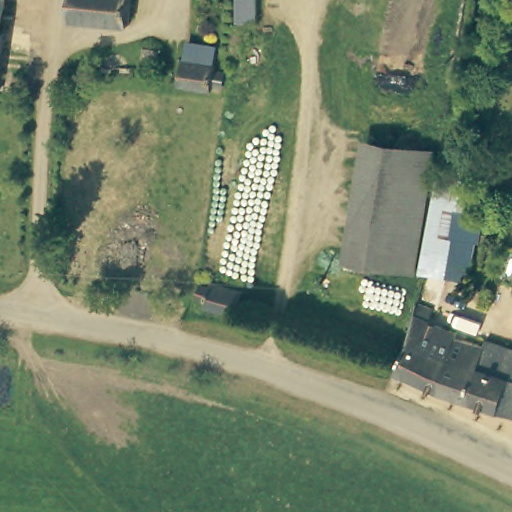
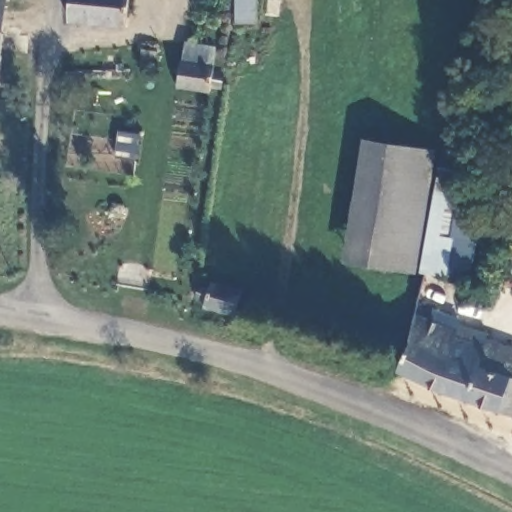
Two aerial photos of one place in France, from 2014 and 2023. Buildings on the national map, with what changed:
unchanged [(123,0),(121,21),(64,15),(66,0),(123,0)]
unchanged [(255,0),(255,23),(236,23),(236,0),(255,0)]
unchanged [(212,71),(217,73),(218,73),(219,74),(220,74),(221,76),(222,79),(222,80),(222,81),(221,83),(221,84),(220,85),(219,86),(217,87),(216,87),(209,87),(209,92),(176,86),(180,60),(184,61),(186,43),(214,46),(212,66),(213,66),(212,71)]
unchanged [(139,65),(141,49),(157,51),(155,68),(139,65)]
unchanged [(410,265),(347,256),(366,135),(429,145),(410,265)]
unchanged [(203,307),(205,300),(195,298),(198,284),(209,287),(211,282),(242,290),(235,315),(203,307)]
unchanged [(429,315),(456,327),(455,332),(484,340),(486,334),(493,337),(512,344),(512,410),(498,405),(440,385),(398,365),(411,335),(410,334),(418,298),(433,303),(429,315)]

